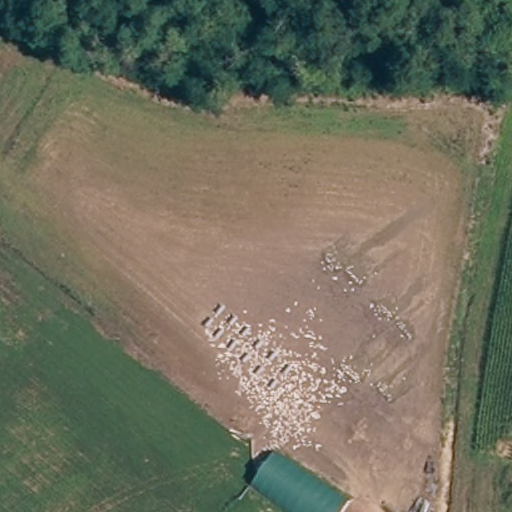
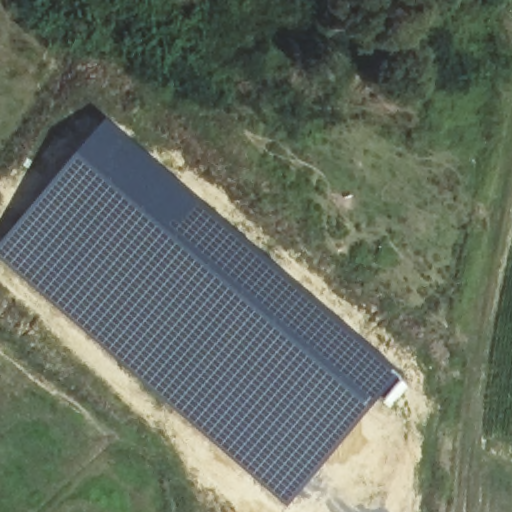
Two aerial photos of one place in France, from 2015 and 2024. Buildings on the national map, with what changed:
new [(403,375),(286,507),(0,259),(0,245),(106,120),(403,375)]
demolished [(282,512),(255,484),(288,455),(346,512),(282,512)]

